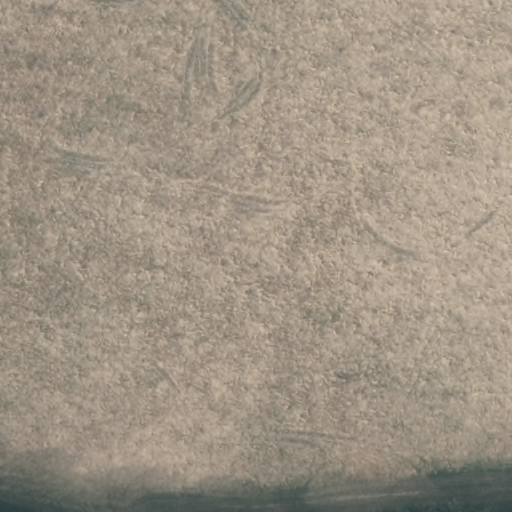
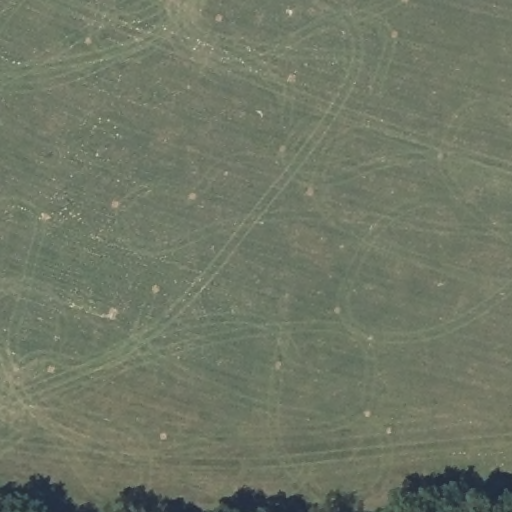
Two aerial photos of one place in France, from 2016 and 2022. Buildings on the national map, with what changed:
[]

